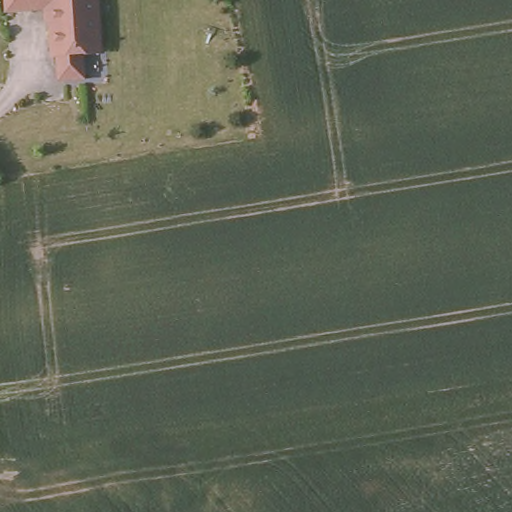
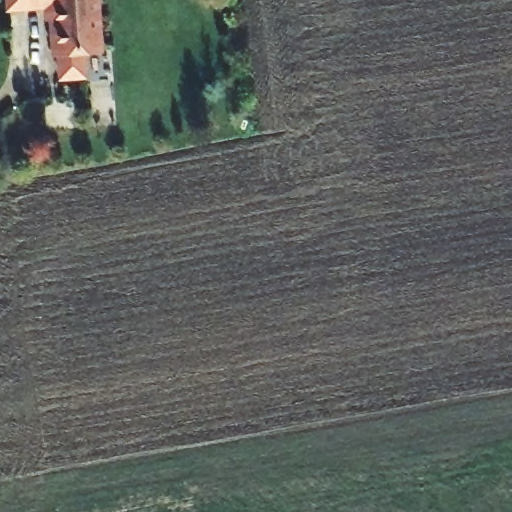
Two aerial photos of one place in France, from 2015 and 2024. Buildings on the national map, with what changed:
unchanged [(79,49),(82,76),(59,78),(55,52),(50,52),(45,7),(3,12),(2,0),(92,0),(97,47),(79,49)]

